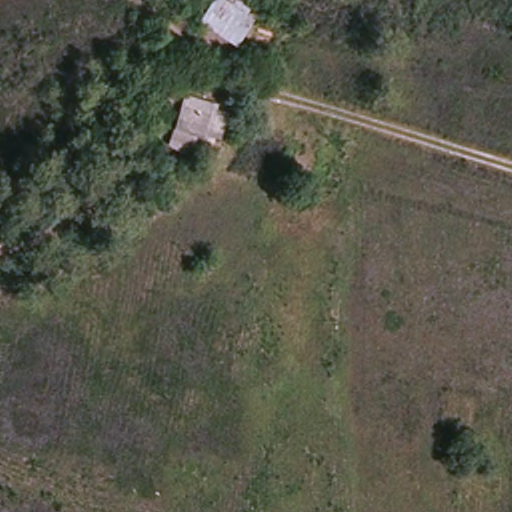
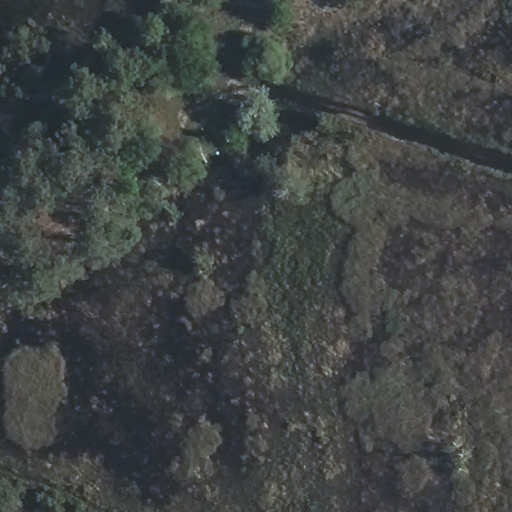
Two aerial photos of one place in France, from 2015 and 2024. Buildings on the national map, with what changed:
unchanged [(248,19),(255,24),(237,50),(199,23),(216,0),(235,0),(254,11),(248,19)]
unchanged [(222,105),(219,111),(229,114),(222,143),(204,139),(197,161),(168,151),(183,94),(222,105)]

